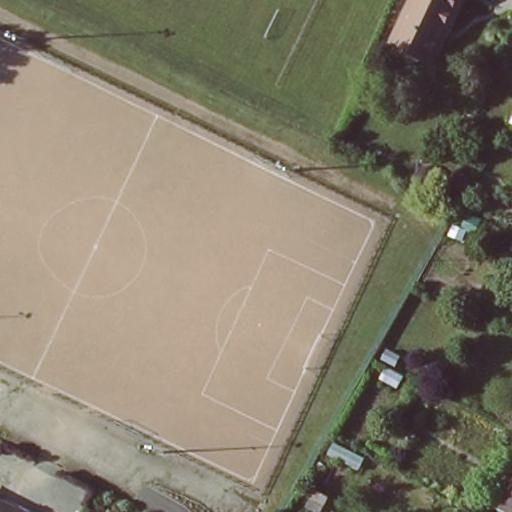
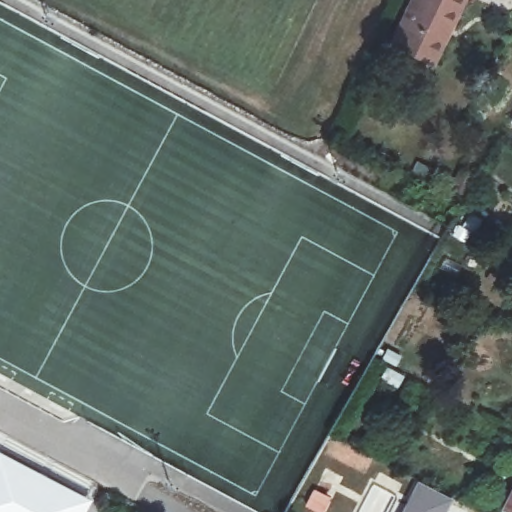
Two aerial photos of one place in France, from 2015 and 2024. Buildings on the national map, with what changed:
unchanged [(392,42),(410,0),(458,0),(448,24),(432,60),(422,55),(392,42)]
new [(84,512),(0,512),(0,452),(90,501),(84,512)]
unchanged [(512,487),(512,512),(509,512),(501,507),(512,487)]
demolished [(0,501),(20,512),(0,512),(0,501)]

